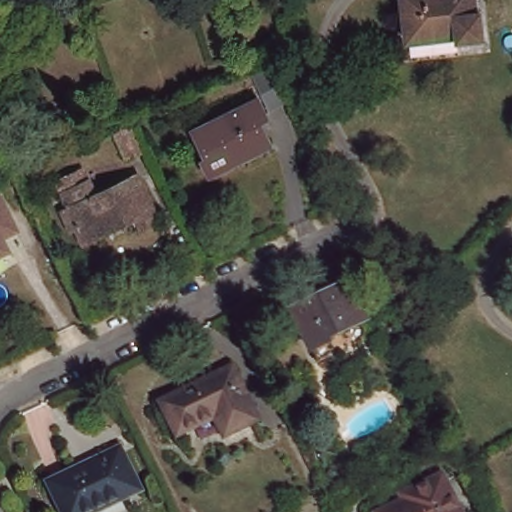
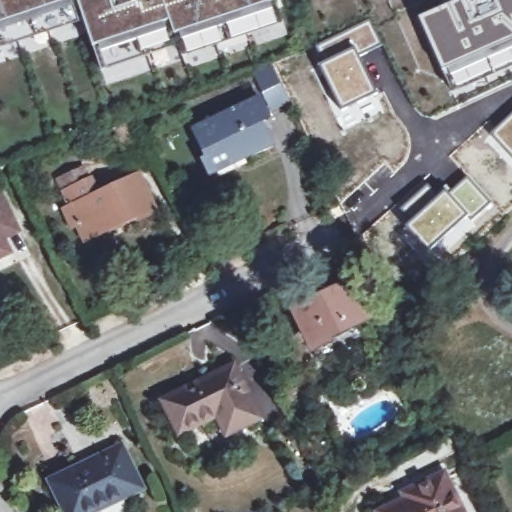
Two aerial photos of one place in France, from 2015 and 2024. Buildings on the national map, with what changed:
new [(181,33),(175,35),(177,45),(103,70),(85,19),(0,48),(0,0),(274,0),(275,1),(282,23),(189,55),(181,33)]
demolished [(410,39),(406,0),(477,0),(478,18),(485,18),(486,36),(459,38),(459,34),(410,39)]
new [(512,0),(512,66),(454,92),(442,69),(419,17),(456,0),(512,0)]
new [(341,109),(319,63),(323,60),(316,48),(345,34),(369,21),(381,44),(358,56),(376,93),(341,109)]
unchanged [(286,111),(271,119),(254,86),(271,79),(286,111)]
unchanged [(208,169),(194,139),(258,106),(268,126),(257,133),(266,150),(242,163),(212,178),(208,169)]
new [(490,136),(512,113),(512,159),(490,136)]
new [(467,177),(493,207),(474,223),(448,193),(467,177)]
unchanged [(108,230),(80,244),(59,199),(93,183),(99,198),(133,183),(149,216),(137,223),(110,235),(108,230)]
new [(427,183),(439,195),(445,190),(448,193),(474,223),(477,227),(448,254),(439,245),(432,253),(406,225),(411,219),(400,208),(427,183)]
unchanged [(13,227),(16,233),(0,240),(0,201),(13,227)]
unchanged [(0,258),(0,240),(8,254),(0,258)]
unchanged [(352,249),(364,274),(351,282),(338,256),(352,249)]
unchanged [(331,352),(313,362),(287,309),(343,280),(363,319),(363,320),(325,339),(331,352)]
unchanged [(266,328),(247,338),(233,309),(252,300),(266,328)]
unchanged [(217,408),(181,426),(165,393),(236,358),(260,408),(259,409),(227,425),(217,408)]
unchanged [(134,490),(91,512),(64,512),(49,481),(114,449),(134,490)]
unchanged [(412,507),(408,498),(447,478),(463,512),(401,512),(412,507)]
unchanged [(398,512),(394,512),(397,511),(398,512)]

